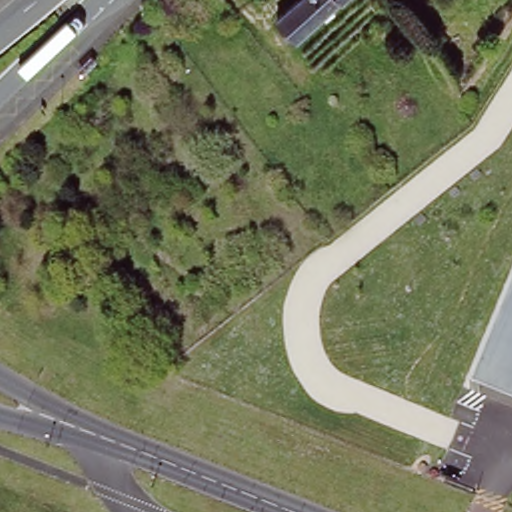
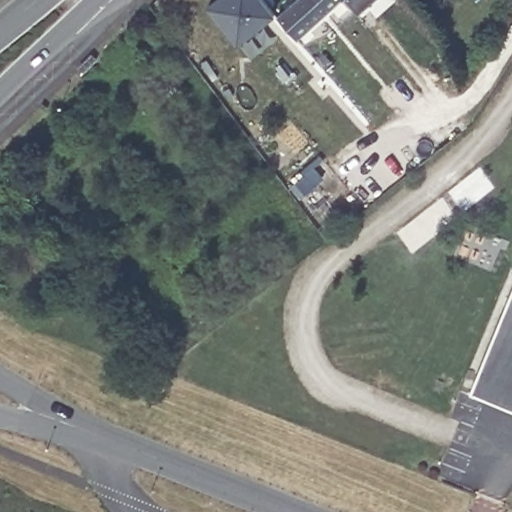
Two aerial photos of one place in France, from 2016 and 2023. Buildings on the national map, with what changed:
new [(263,0),(278,18),(238,50),(210,10),(221,0),(263,0)]
unchanged [(297,0),(340,0),(296,39),(278,18),(297,0)]
unchanged [(343,0),(344,0),(344,1),(343,0)]
unchanged [(512,286),(512,410),(469,394),(512,286)]

